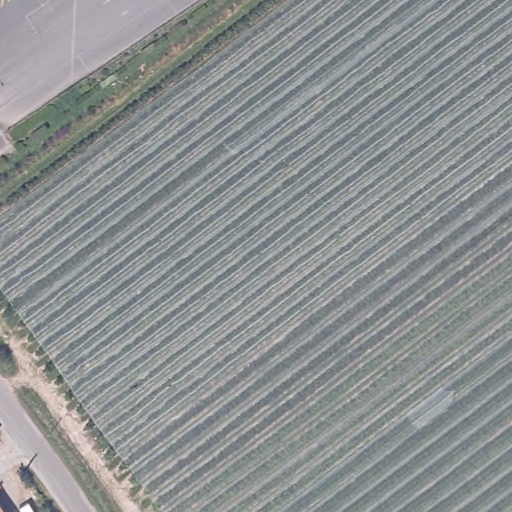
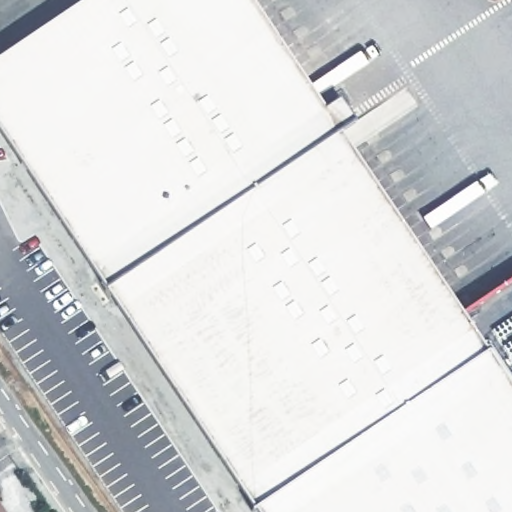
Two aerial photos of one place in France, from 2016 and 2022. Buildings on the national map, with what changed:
new [(253,511),(0,134),(0,57),(84,0),(251,0),(324,109),(338,100),(354,122),(339,132),(462,313),(512,279),(512,389),(488,353),(253,511)]
unchanged [(2,431),(0,433),(0,428),(2,431)]
unchanged [(13,512),(0,512),(0,493),(13,512)]

